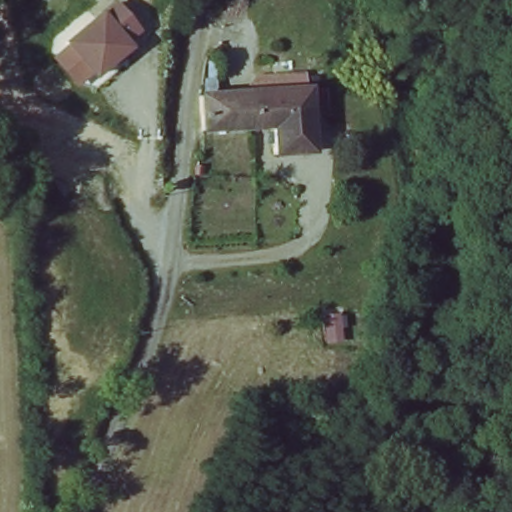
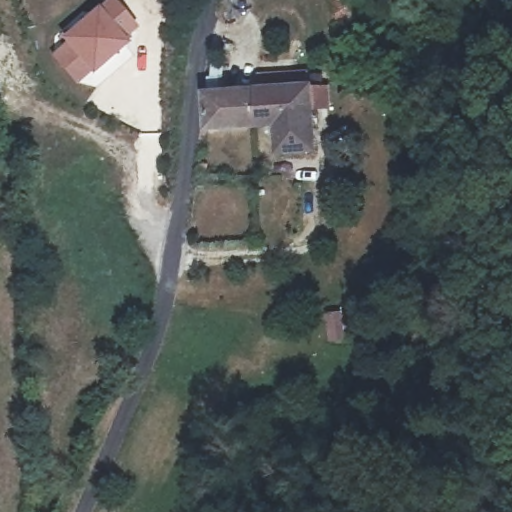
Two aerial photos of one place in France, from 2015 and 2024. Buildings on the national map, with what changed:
unchanged [(120,46),(125,51),(94,80),(65,49),(109,7),(133,34),(120,46)]
unchanged [(254,101),(253,101),(205,106),(206,103),(207,88),(308,80),(309,96),(254,101)]
unchanged [(316,162),(282,167),(279,132),(256,135),(253,101),(254,101),(309,96),(316,162)]
unchanged [(256,135),(201,142),(202,130),(203,117),(205,106),(253,101),(256,135)]

